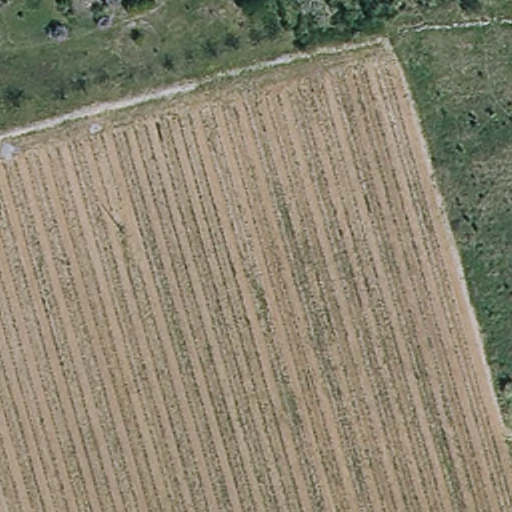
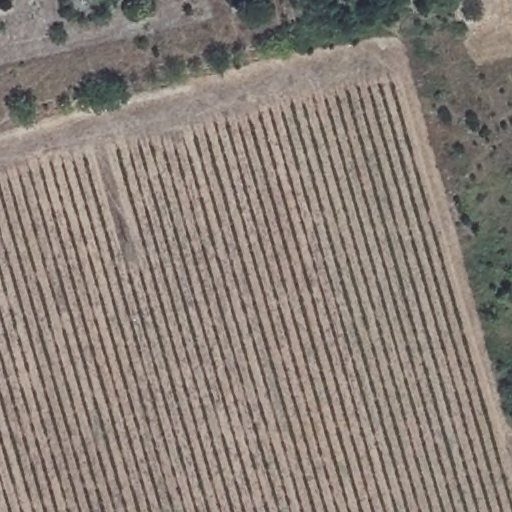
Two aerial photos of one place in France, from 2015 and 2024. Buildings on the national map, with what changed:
[]

